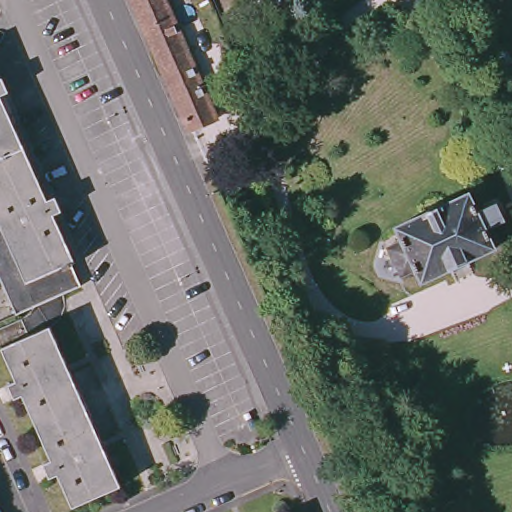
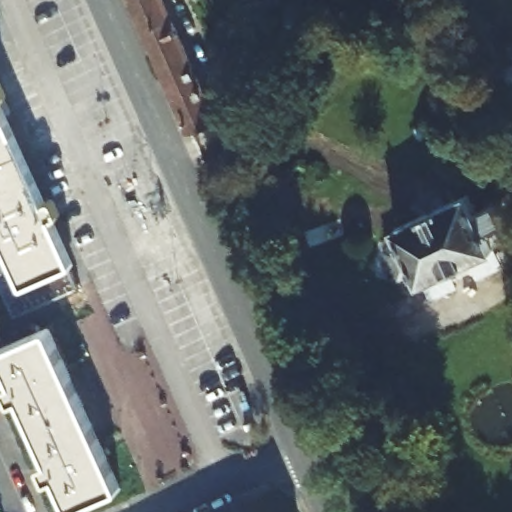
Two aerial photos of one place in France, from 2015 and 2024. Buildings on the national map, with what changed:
unchanged [(187,135),(128,0),(159,0),(212,124),(187,135)]
unchanged [(58,183),(65,198),(63,198),(60,200),(66,215),(78,241),(85,253),(85,255),(69,262),(41,275),(48,289),(40,293),(29,298),(27,298),(24,300),(17,286),(8,266),(3,255),(0,247),(0,65),(3,64),(6,72),(10,79),(4,82),(16,108),(20,116),(35,146),(53,185),(58,183)]
unchanged [(425,275),(420,265),(405,271),(400,260),(397,253),(391,240),(406,234),(401,222),(426,210),(450,200),(475,189),(482,207),(502,199),(511,217),(496,224),(500,230),(503,229),(505,235),(497,238),(500,244),(472,256),(451,265),(425,275)]
unchanged [(24,402),(20,395),(13,398),(6,384),(15,380),(8,367),(5,360),(0,349),(22,338),(19,330),(22,328),(24,328),(35,323),(43,319),(47,328),(66,368),(67,371),(100,440),(111,463),(120,482),(121,485),(108,491),(73,507),(72,507),(70,501),(58,475),(56,476),(50,479),(43,463),(51,459),(24,402)]

